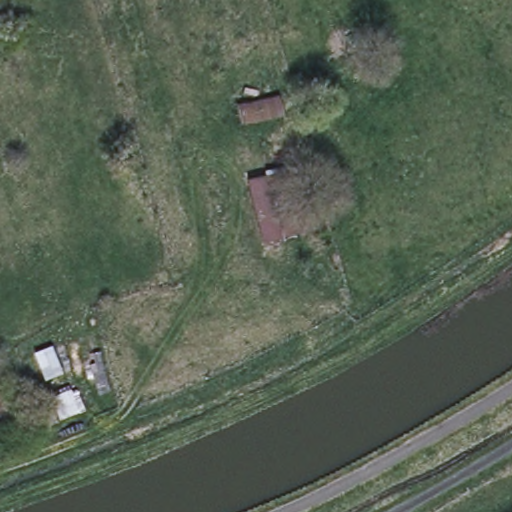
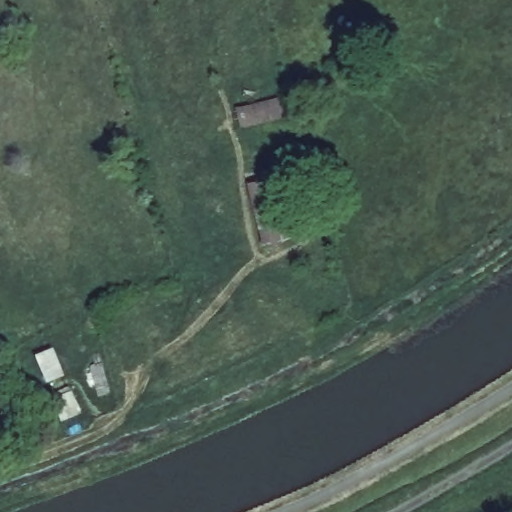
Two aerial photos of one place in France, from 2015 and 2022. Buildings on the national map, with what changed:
unchanged [(264,247),(247,185),(284,174),(301,236),(264,247)]

